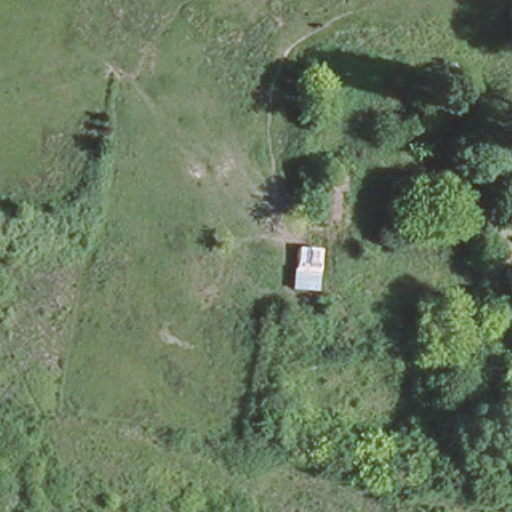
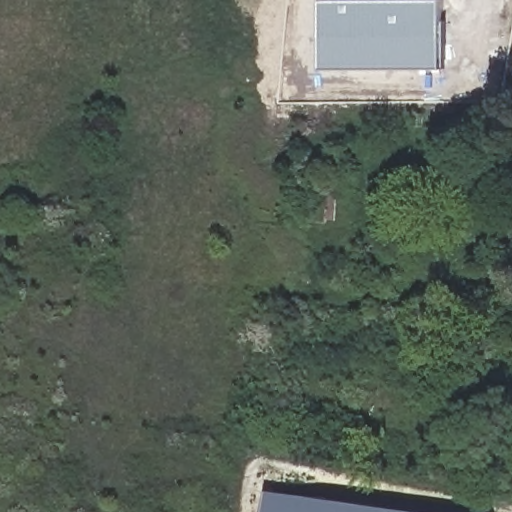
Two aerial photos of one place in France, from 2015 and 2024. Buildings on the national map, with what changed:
new [(440,0),(441,65),(321,68),(320,0),(440,0)]
unchanged [(303,180),(321,180),(322,163),(360,167),(357,208),(305,213),(303,180)]
new [(432,512),(260,512),(262,489),(432,512)]

